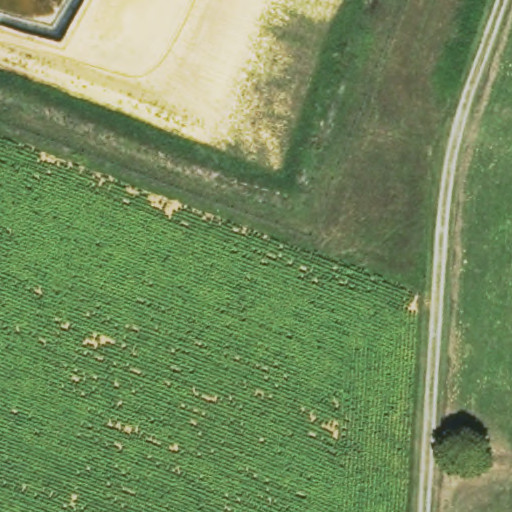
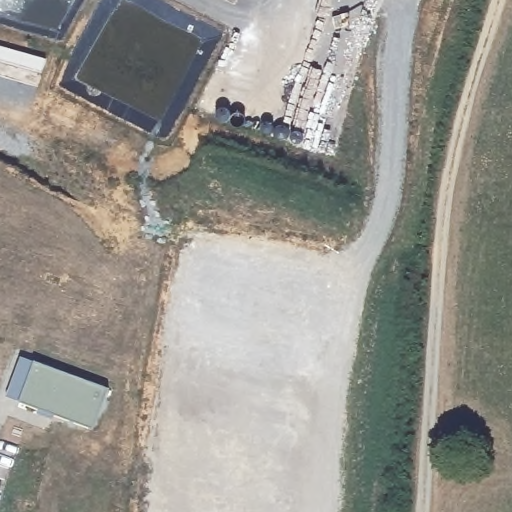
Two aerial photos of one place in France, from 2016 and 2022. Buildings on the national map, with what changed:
new [(94,427),(21,400),(8,396),(22,356),(36,360),(108,387),(94,427)]

